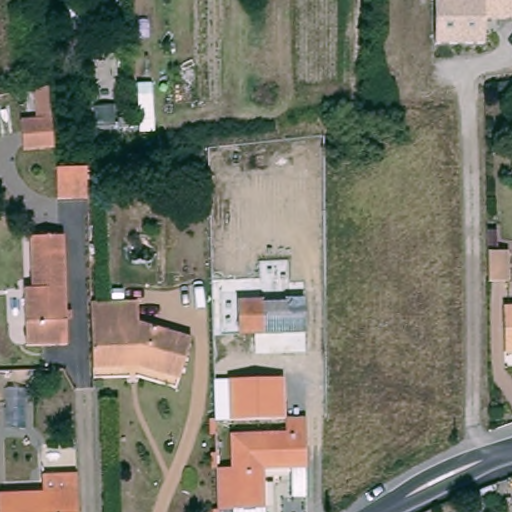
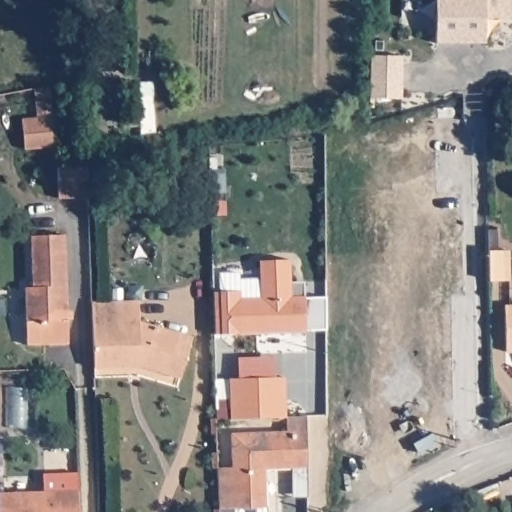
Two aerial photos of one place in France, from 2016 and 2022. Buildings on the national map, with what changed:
unchanged [(484,17),(484,42),(434,40),(436,0),(512,0),(512,18),(484,17)]
new [(371,54),(403,54),(402,96),(370,96),(371,54)]
unchanged [(61,144),(31,147),(28,119),(58,116),(61,144)]
unchanged [(88,193),(59,194),(58,162),(87,161),(88,193)]
unchanged [(493,249),(492,227),(501,227),(502,249),(512,249),(512,277),(493,277),(493,250),(493,249)]
unchanged [(73,344),(32,345),(31,287),(37,287),(36,236),(69,235),(73,344)]
unchanged [(244,299),(261,299),(261,291),(270,291),(270,298),(308,297),(309,330),(246,332),(244,299)]
unchanged [(100,367),(97,302),(143,300),(144,321),(197,338),(184,377),(145,366),(132,366),(100,367)]
unchanged [(507,354),(506,308),(512,308),(512,354),(507,354)]
unchanged [(214,419),(214,379),(229,379),(284,378),(284,417),(231,419),(214,419)]
unchanged [(219,488),(218,475),(235,474),(234,432),(290,430),(290,415),(310,414),(311,467),(266,469),(268,506),(236,507),(219,507),(219,488)]
unchanged [(5,512),(4,492),(48,491),(47,473),(82,472),(83,489),(84,512),(5,512)]

